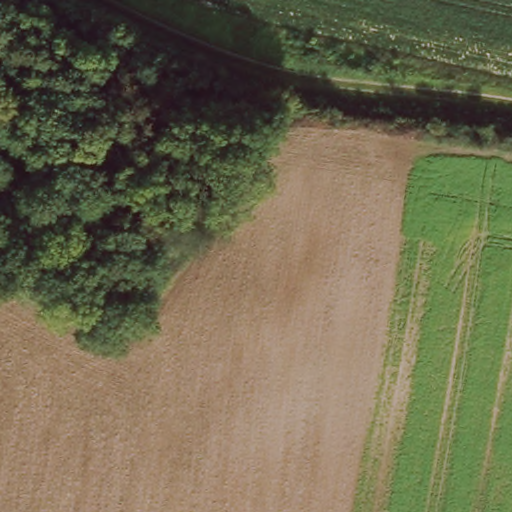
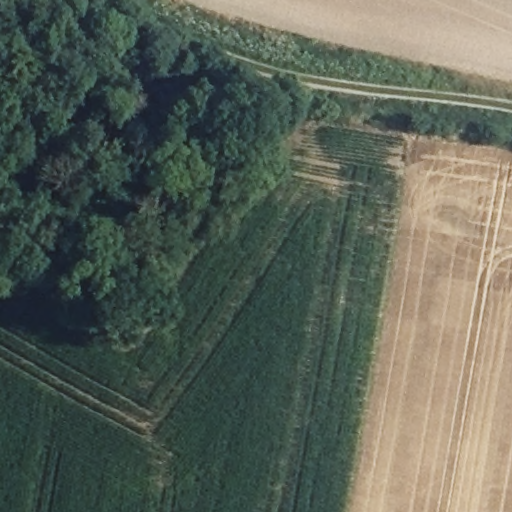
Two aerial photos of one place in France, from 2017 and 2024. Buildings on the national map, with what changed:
[]

